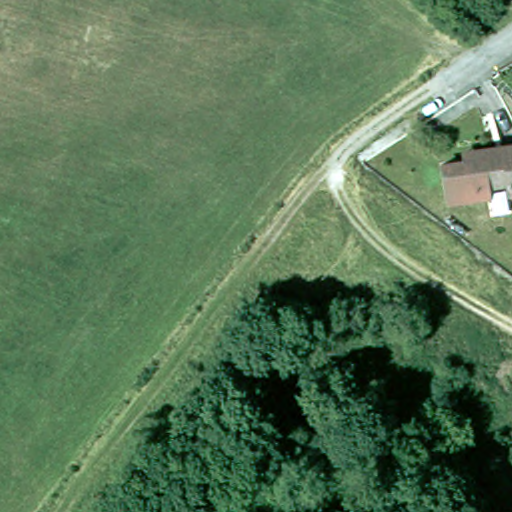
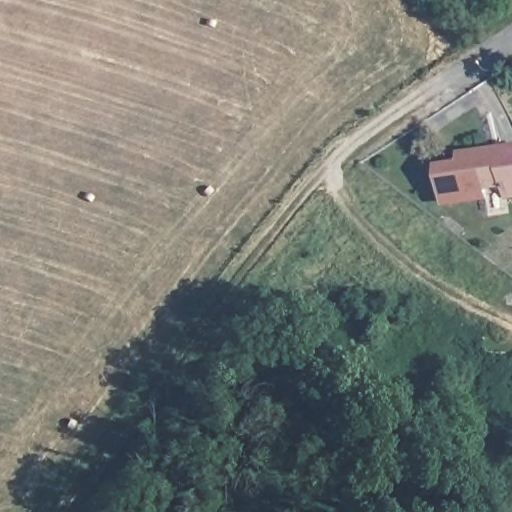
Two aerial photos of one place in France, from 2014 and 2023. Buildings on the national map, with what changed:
unchanged [(503,182),(487,184),(488,187),(443,192),(438,162),(460,158),(460,155),(497,151),(496,147),(512,145),(512,194),(505,194),(503,182)]

